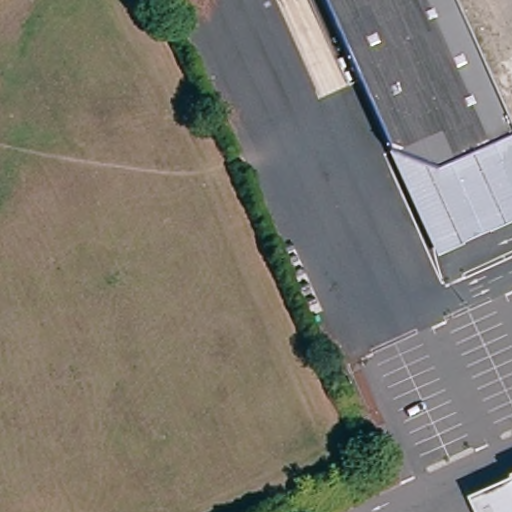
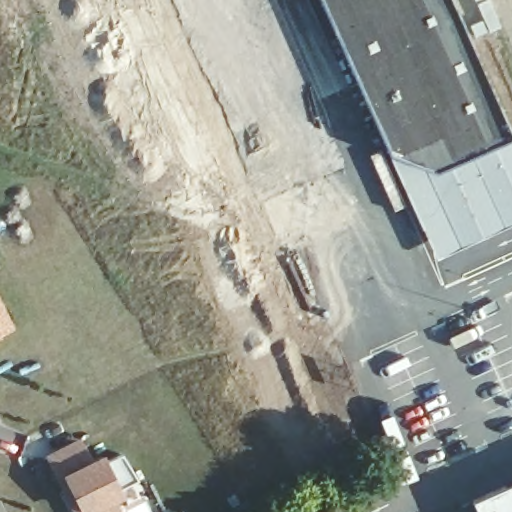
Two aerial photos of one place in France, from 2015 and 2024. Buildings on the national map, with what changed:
unchanged [(321,0),(453,0),(512,134),(512,223),(435,257),(389,153),(321,0)]
new [(16,328),(0,336),(0,296),(16,328)]
new [(45,455),(80,437),(92,459),(104,453),(109,461),(123,454),(138,478),(120,489),(125,497),(117,501),(123,512),(74,512),(45,455)]
unchanged [(472,499),(512,481),(512,512),(478,512),(472,499)]

